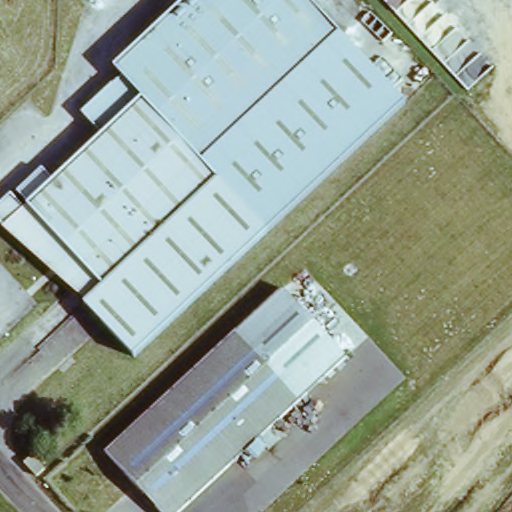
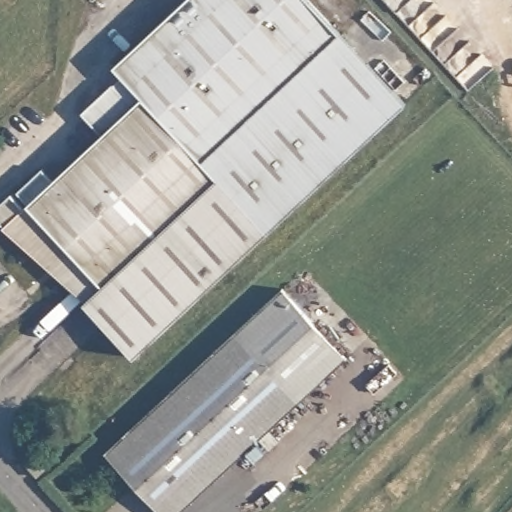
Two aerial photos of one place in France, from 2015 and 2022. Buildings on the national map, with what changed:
unchanged [(187,0),(306,0),(402,104),(289,209),(138,46),(187,0)]
unchanged [(133,353),(83,300),(101,281),(83,264),(68,281),(0,221),(0,205),(11,194),(24,205),(28,199),(18,190),(45,167),(55,177),(102,133),(83,113),(122,75),(115,67),(138,46),(289,209),(133,353)]
unchanged [(344,354),(304,393),(243,328),(282,291),(344,354)]
unchanged [(239,323),(304,393),(175,512),(167,512),(106,446),(239,323)]

